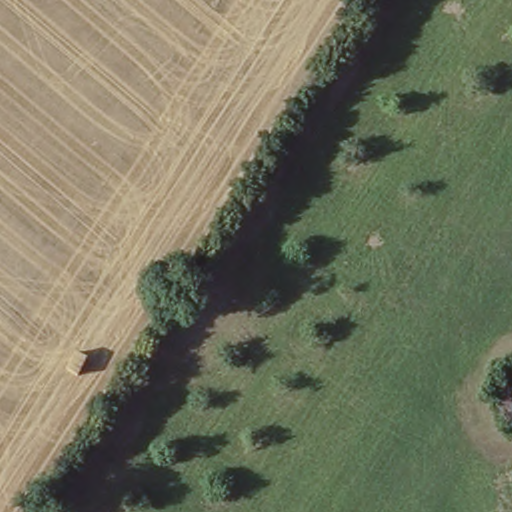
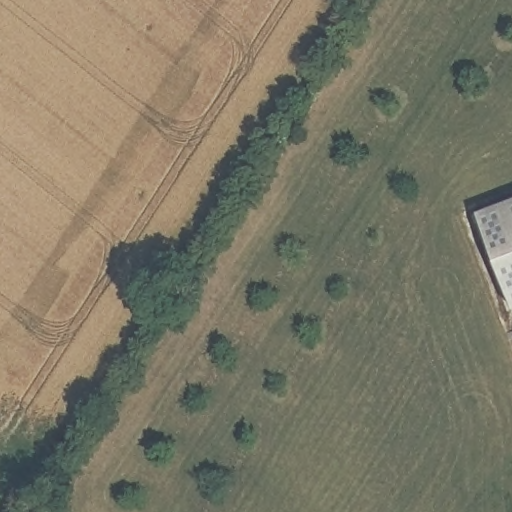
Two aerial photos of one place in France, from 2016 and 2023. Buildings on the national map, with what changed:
new [(478,214),(512,201),(512,303),(478,214)]

